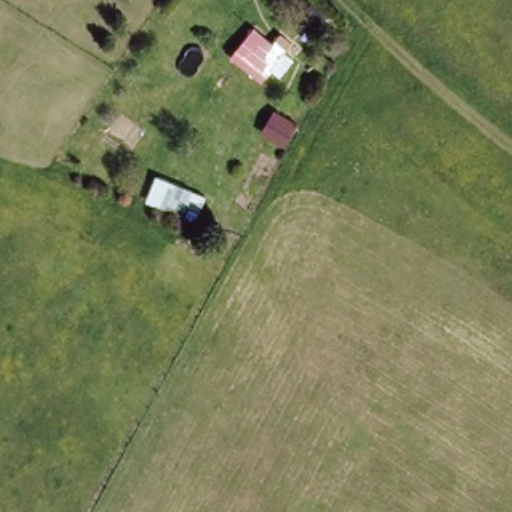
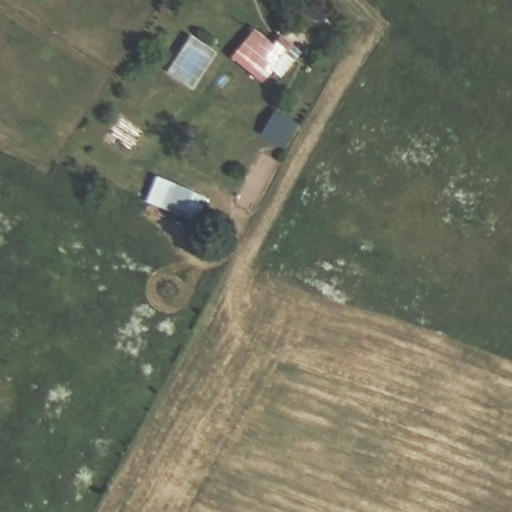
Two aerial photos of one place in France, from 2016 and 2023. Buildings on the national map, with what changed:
unchanged [(254,24),(275,41),(280,35),(293,46),(289,51),(295,56),(280,76),(270,69),(261,81),(231,55),(254,24)]
unchanged [(207,191),(191,220),(144,200),(156,171),(207,191)]

